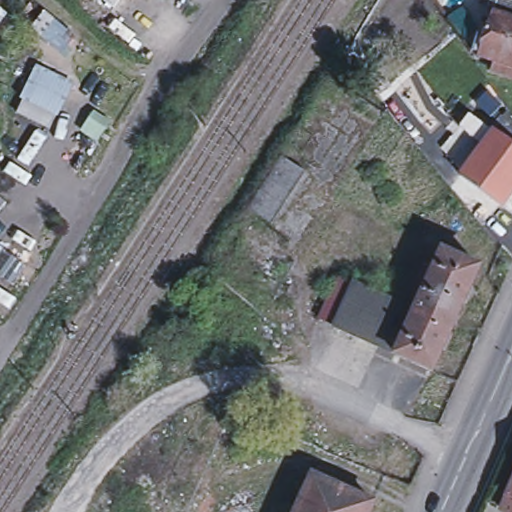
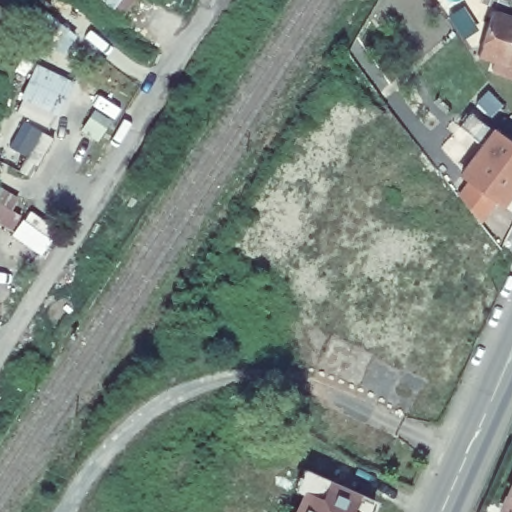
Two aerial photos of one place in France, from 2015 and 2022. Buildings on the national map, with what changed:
unchanged [(486,4),(487,0),(512,0),(512,17),(497,12),(498,10),(486,4)]
unchanged [(512,17),(512,77),(495,71),(498,63),(481,57),(495,12),(497,12),(512,17)]
new [(75,82),(59,117),(55,115),(49,128),(17,112),(23,100),(21,99),(36,65),(75,82)]
unchanged [(501,207),(461,176),(494,131),(512,145),(512,192),(501,207)]
unchanged [(433,147),(444,161),(434,169),(424,155),(433,147)]
unchanged [(305,172),(272,225),(250,211),(284,159),(305,172)]
demolished [(421,311),(427,299),(413,293),(429,257),(442,264),(448,250),(486,267),(437,372),(337,328),(338,327),(325,321),(345,277),(421,311)]
unchanged [(351,452),(348,460),(336,455),(339,447),(351,452)]
unchanged [(370,512),(296,512),(313,475),(374,503),(370,512)]
unchanged [(512,488),(512,512),(503,512),(502,512),(512,488)]

